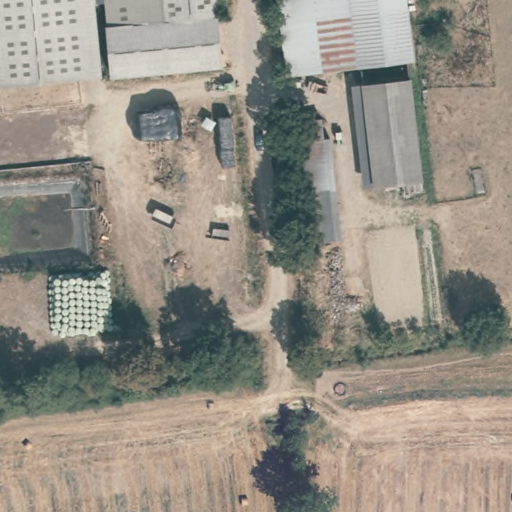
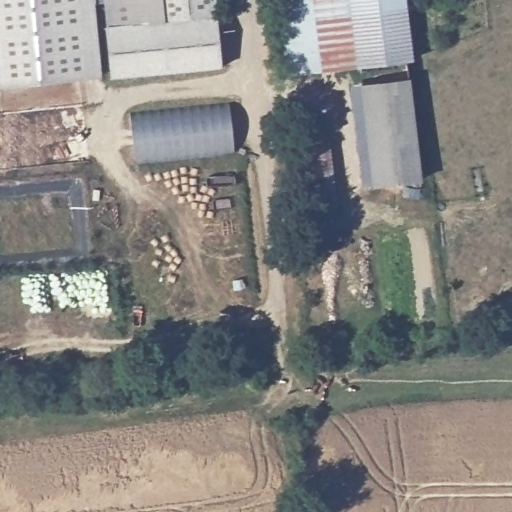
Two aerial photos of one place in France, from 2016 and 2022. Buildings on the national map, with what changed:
unchanged [(99,72),(0,83),(0,0),(93,0),(99,72)]
unchanged [(221,62),(113,72),(106,0),(215,0),(221,62)]
unchanged [(277,0),(401,0),(406,42),(409,58),(287,70),(285,57),(277,0)]
unchanged [(410,84),(421,185),(373,187),(363,87),(410,84)]
new [(131,113),(228,106),(234,154),(136,164),(131,113)]
unchanged [(321,123),(334,241),(306,244),(292,125),(321,123)]

